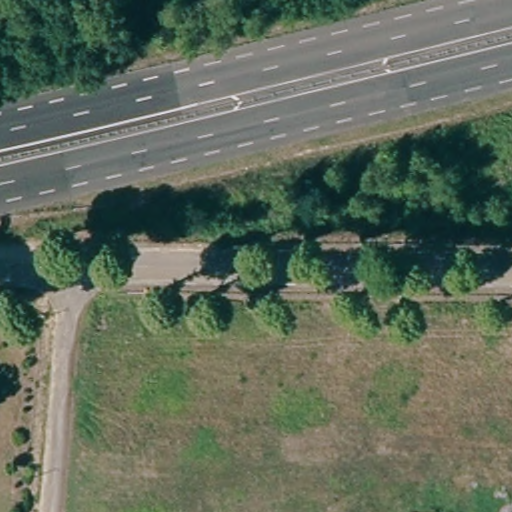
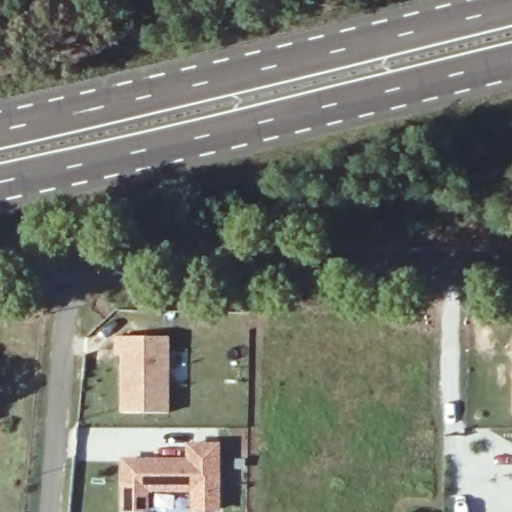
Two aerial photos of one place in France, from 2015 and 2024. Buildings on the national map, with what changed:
new [(170,337),(170,414),(120,414),(121,356),(114,356),(114,335),(170,337)]
new [(219,511),(190,511),(190,493),(148,492),(148,512),(129,512),(120,512),(120,458),(185,458),(185,442),(220,442),(219,511)]

